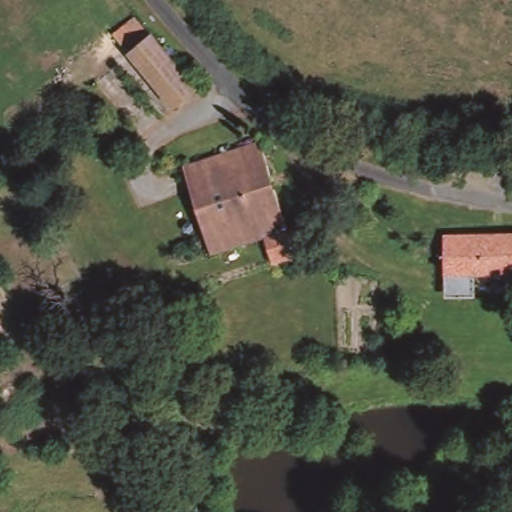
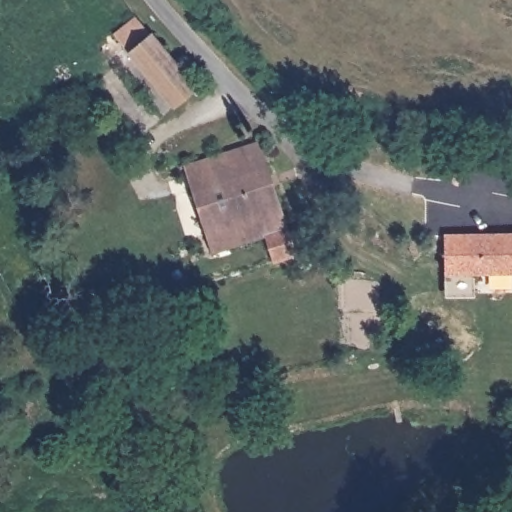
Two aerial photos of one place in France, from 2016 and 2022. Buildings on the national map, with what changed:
unchanged [(154,34),(202,86),(172,114),(110,37),(135,18),(154,34)]
unchanged [(294,260),(210,280),(190,163),(270,147),(294,260)]
unchanged [(512,266),(487,267),(441,268),(442,246),(479,245),(479,237),(512,237),(512,266)]

